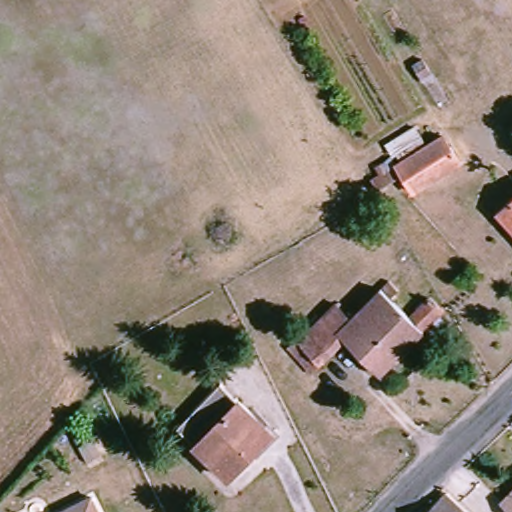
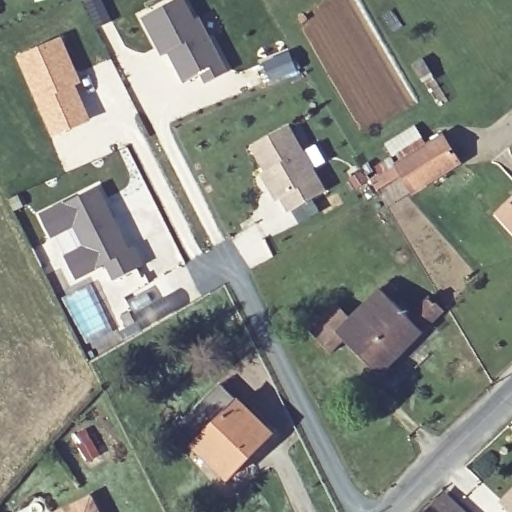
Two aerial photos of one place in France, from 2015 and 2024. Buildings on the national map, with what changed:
new [(207,81),(201,71),(185,79),(165,43),(159,46),(143,15),(172,0),(182,0),(192,19),(197,16),(226,71),(207,81)]
new [(62,34),(83,82),(77,84),(92,119),(51,138),(15,57),(62,34)]
new [(252,144),(287,124),(326,189),(291,209),(282,195),(278,198),(268,182),(262,172),(267,169),(252,144)]
unchanged [(381,175),(378,166),(421,139),(425,145),(443,136),(463,165),(414,193),(402,179),(378,192),(371,180),(381,175)]
new [(97,191),(127,254),(131,253),(140,272),(112,284),(105,267),(73,280),(64,259),(85,250),(74,227),(50,239),(41,217),(97,191)]
unchanged [(501,218),(512,207),(512,230),(501,218)]
unchanged [(362,314),(416,262),(422,269),(393,301),(412,320),(432,300),(446,316),(382,378),(349,344),(322,369),(291,334),(336,290),(362,314)]
unchanged [(282,432),(232,485),(175,430),(224,381),(282,432)]
unchanged [(500,504),(512,491),(512,512),(508,512),(500,504)]
unchanged [(92,496),(101,512),(61,512),(92,496)]
unchanged [(461,512),(428,512),(444,496),(461,512)]

